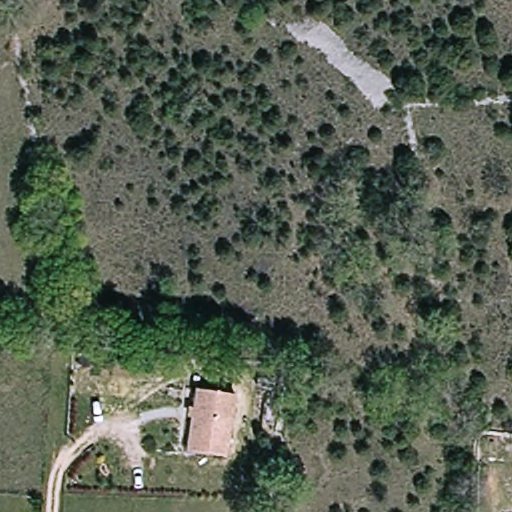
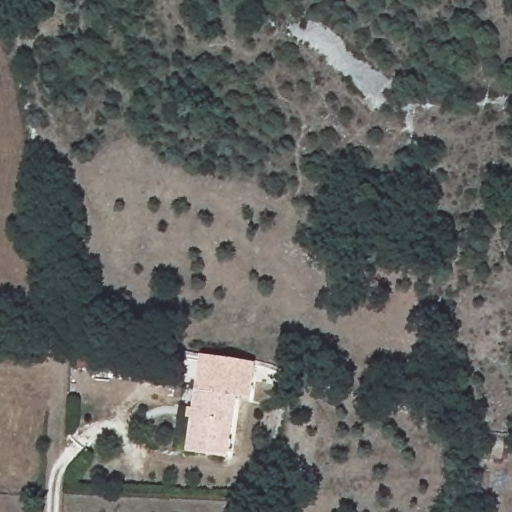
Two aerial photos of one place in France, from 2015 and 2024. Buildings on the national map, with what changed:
new [(236,396),(236,401),(199,396),(195,392),(201,355),(256,363),(250,399),(236,396)]
unchanged [(191,457),(191,447),(199,396),(236,401),(227,452),(226,463),(191,457)]

